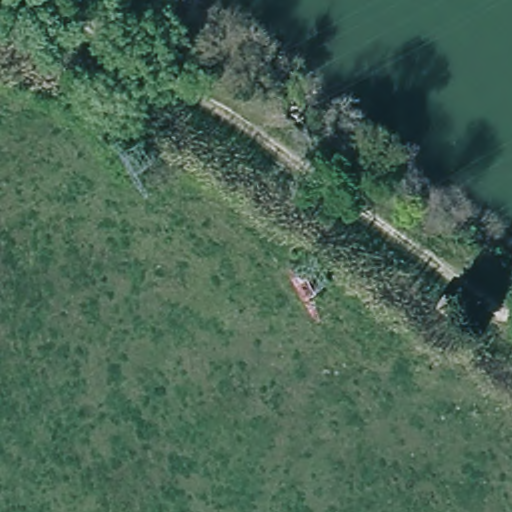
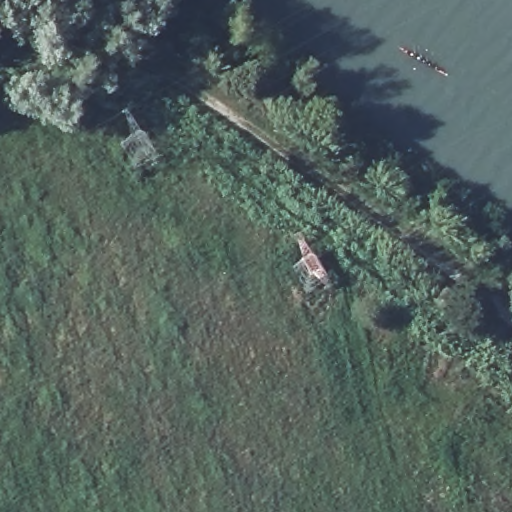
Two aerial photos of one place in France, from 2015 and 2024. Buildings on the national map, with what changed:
unchanged [(483,309),(473,323),(436,296),(445,283),(483,309)]

